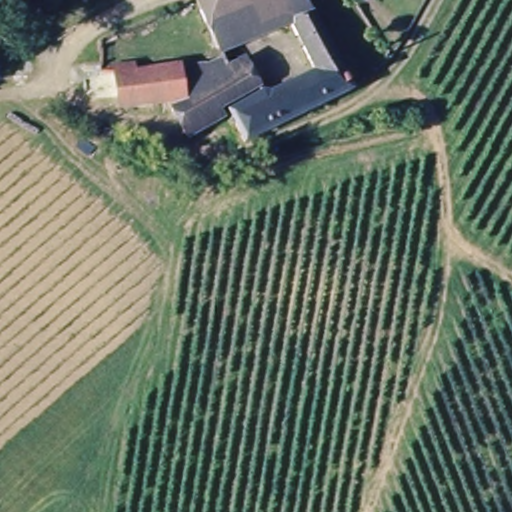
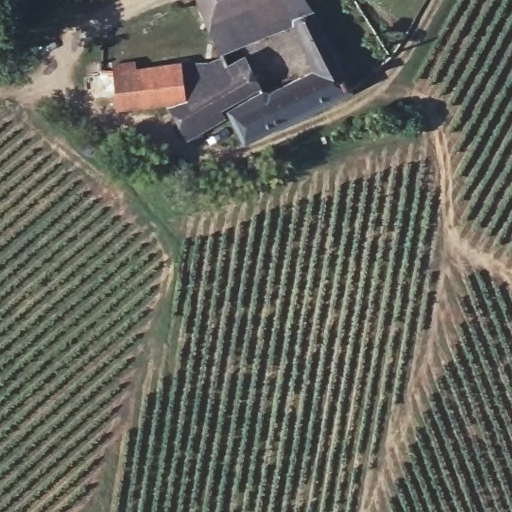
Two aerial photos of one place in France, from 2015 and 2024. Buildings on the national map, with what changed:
unchanged [(110,66),(134,63),(135,69),(221,57),(201,0),(310,0),(353,93),(246,146),(232,120),(185,142),(167,106),(118,112),(110,66)]

